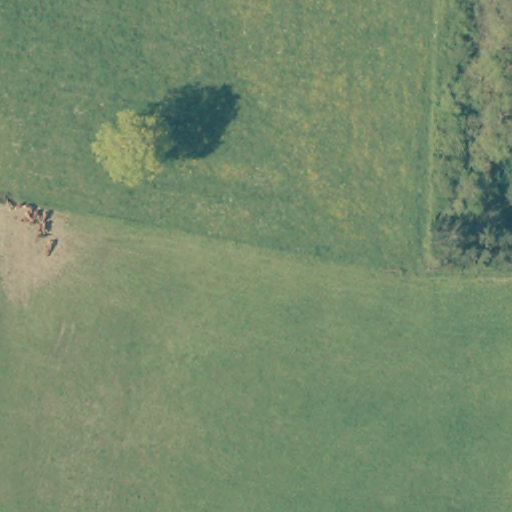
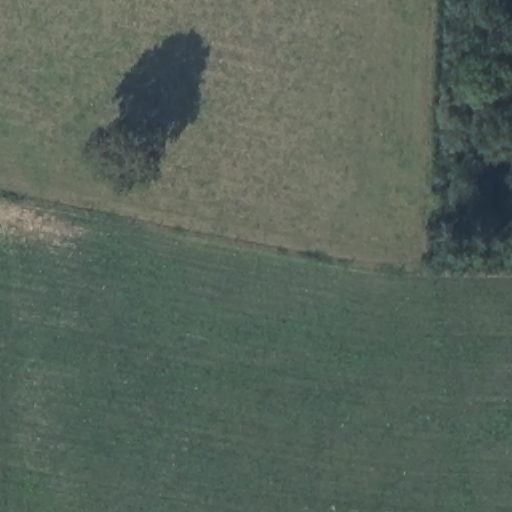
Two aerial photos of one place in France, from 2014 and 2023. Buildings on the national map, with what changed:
[]

